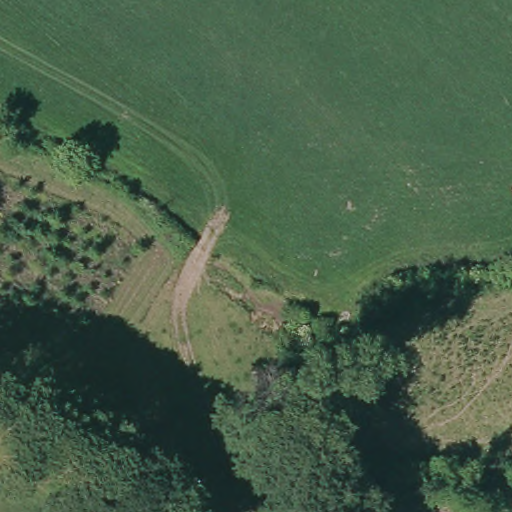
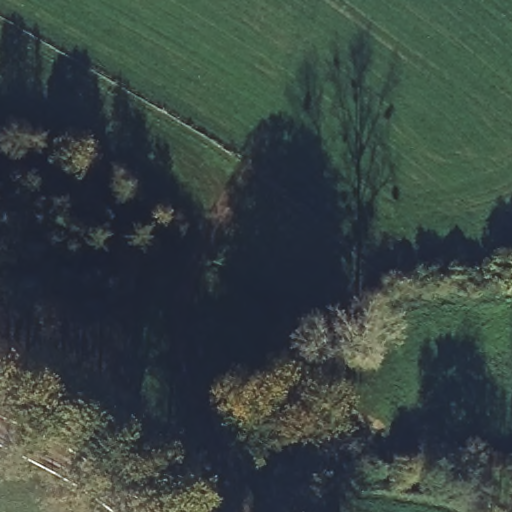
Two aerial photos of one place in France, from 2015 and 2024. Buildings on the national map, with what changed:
[]

